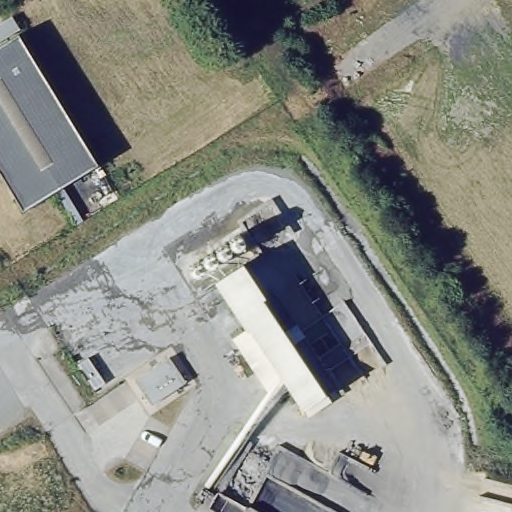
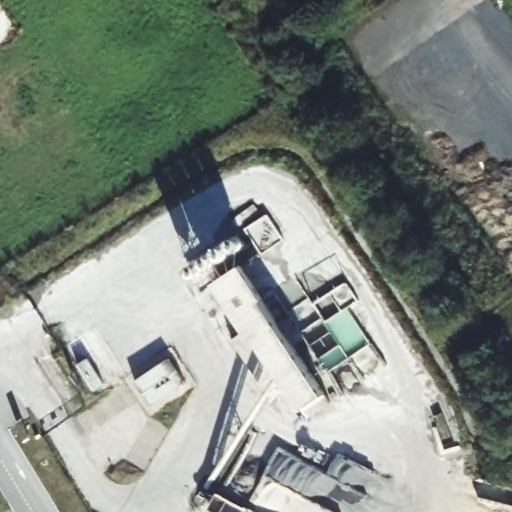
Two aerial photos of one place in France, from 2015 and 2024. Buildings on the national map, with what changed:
demolished [(95,166),(21,211),(0,177),(0,47),(17,36),(95,166)]
unchanged [(302,409),(288,387),(247,329),(215,280),(244,263),(267,298),(264,300),(326,394),(331,403),(308,418),(302,409)]
unchanged [(272,399),(232,339),(247,329),(288,387),(272,399)]
unchanged [(186,383),(151,405),(135,381),(169,358),(186,383)]

